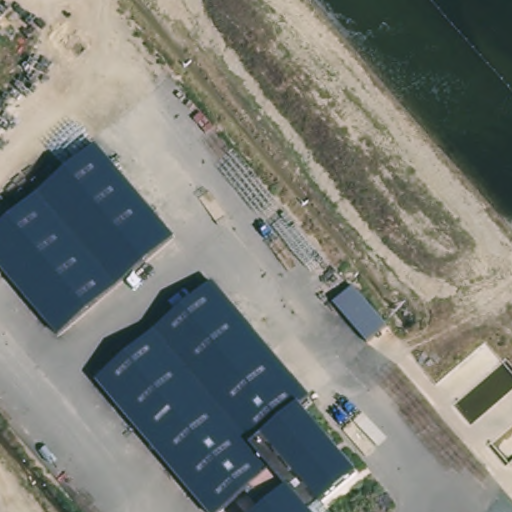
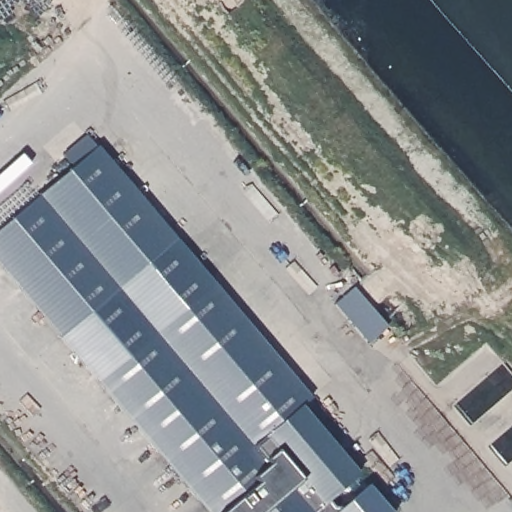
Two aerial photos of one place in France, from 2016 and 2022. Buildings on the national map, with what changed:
unchanged [(57,338),(0,270),(0,225),(95,146),(175,239),(57,338)]
new [(175,239),(211,282),(94,380),(57,338),(175,239)]
unchanged [(312,512),(257,512),(259,510),(245,493),(223,512),(207,512),(94,380),(211,282),(308,397),(299,404),(357,474),(312,511),(312,512)]
unchanged [(386,327),(366,344),(332,304),(353,286),(386,327)]
new [(326,500),(334,509),(366,485),(391,512),(312,512),(312,511),(326,500)]

